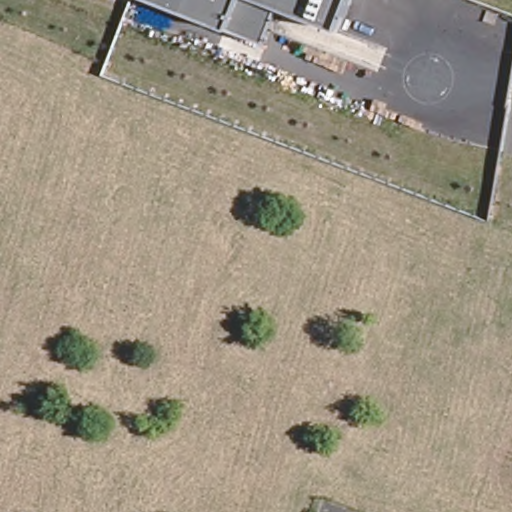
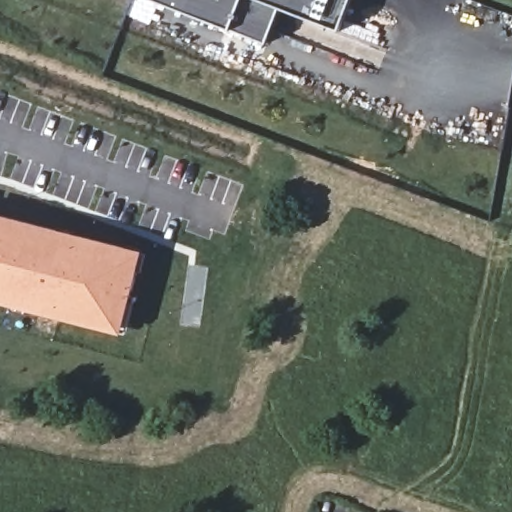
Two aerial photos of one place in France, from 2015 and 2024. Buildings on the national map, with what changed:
unchanged [(341,27),(281,5),(268,41),(232,27),(160,0),(352,0),(341,27)]
new [(144,250),(122,335),(0,304),(0,214),(144,250)]

